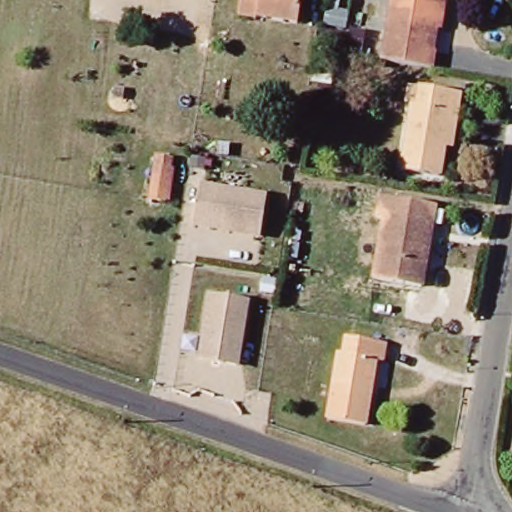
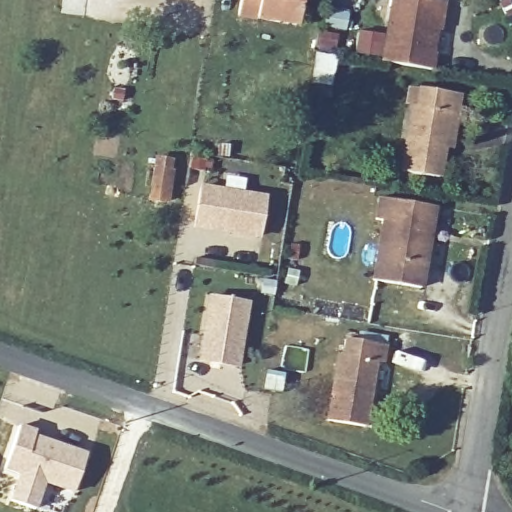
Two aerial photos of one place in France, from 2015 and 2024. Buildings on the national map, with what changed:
unchanged [(294,26),(236,16),(238,0),(299,0),(294,26)]
unchanged [(436,31),(428,29),(425,51),(430,52),(427,68),(381,62),(390,0),(440,0),(436,31)]
unchanged [(339,57),(333,87),(312,82),(318,53),(339,57)]
unchanged [(395,167),(404,103),(409,104),(412,84),(451,90),(448,110),(443,142),(434,140),(429,172),(395,167)]
unchanged [(145,203),(148,173),(161,175),(159,204),(145,203)]
unchanged [(267,195),(261,239),(190,229),(198,183),(267,195)]
unchanged [(382,218),(375,217),(378,199),(431,206),(419,287),(373,280),(382,218)]
unchanged [(238,364),(188,357),(198,283),(248,289),(238,364)]
unchanged [(343,336),(382,342),(379,360),(371,359),(361,422),(325,416),(335,350),(341,352),(343,336)]
new [(19,424),(36,430),(35,434),(87,453),(73,494),(45,485),(36,509),(7,499),(16,475),(2,470),(19,424)]

